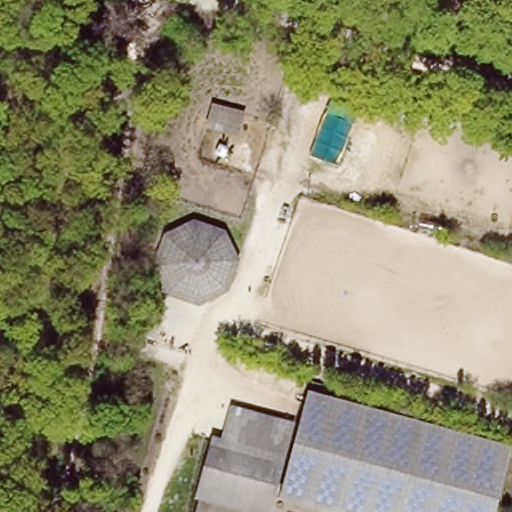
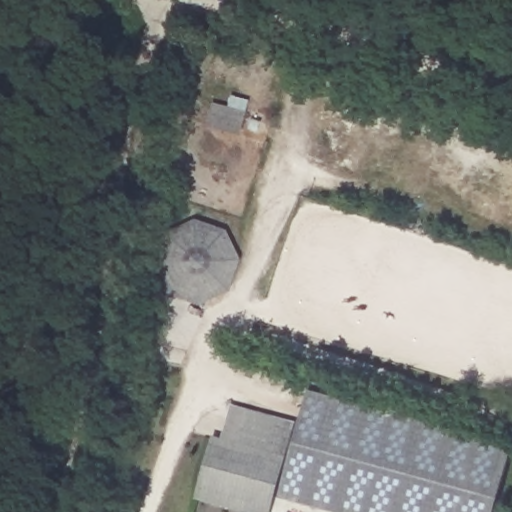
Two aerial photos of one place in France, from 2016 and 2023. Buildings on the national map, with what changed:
unchanged [(225,231),(240,260),(228,292),(198,306),(166,296),(153,268),(161,235),(192,220),(225,231)]
unchanged [(512,449),(494,512),(331,512),(279,498),(274,512),(244,512),(195,500),(212,435),(221,436),(231,406),(296,430),(310,391),(512,447),(512,449)]

